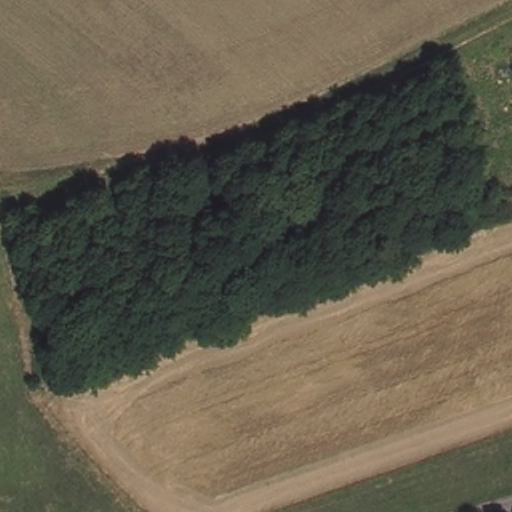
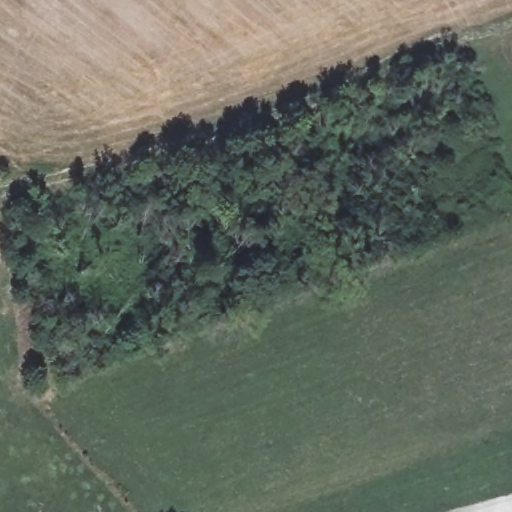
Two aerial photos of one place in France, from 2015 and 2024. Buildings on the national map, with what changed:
[]

